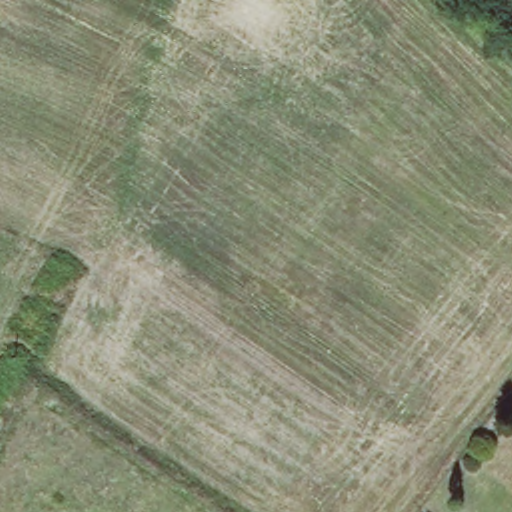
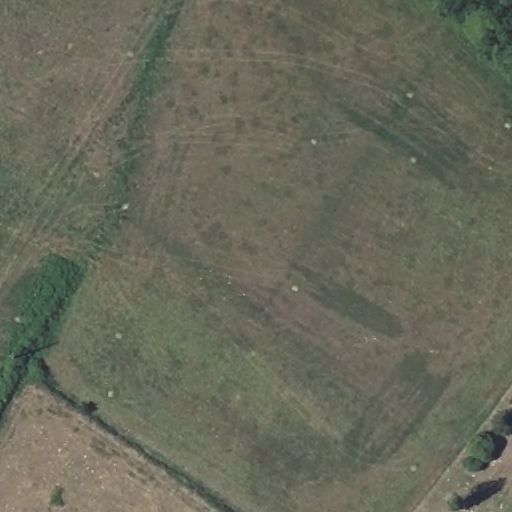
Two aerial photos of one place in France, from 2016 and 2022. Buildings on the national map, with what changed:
[]

